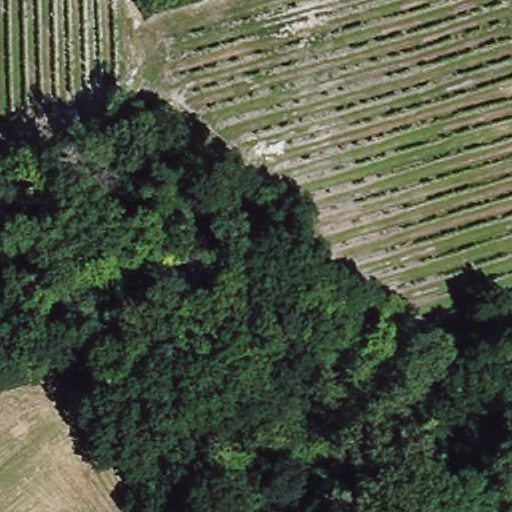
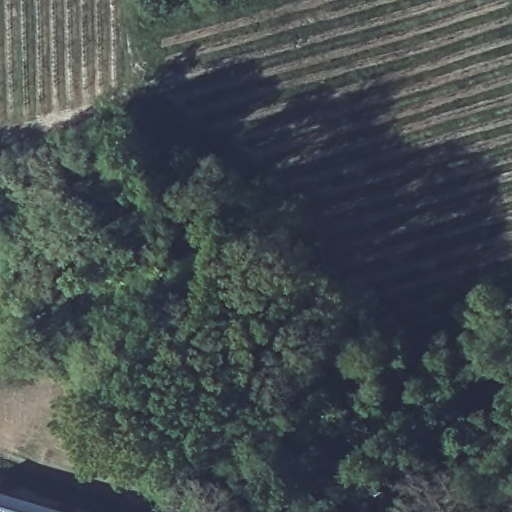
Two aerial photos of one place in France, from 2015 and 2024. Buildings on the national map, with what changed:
new [(77,512),(0,512),(0,490),(77,512)]

